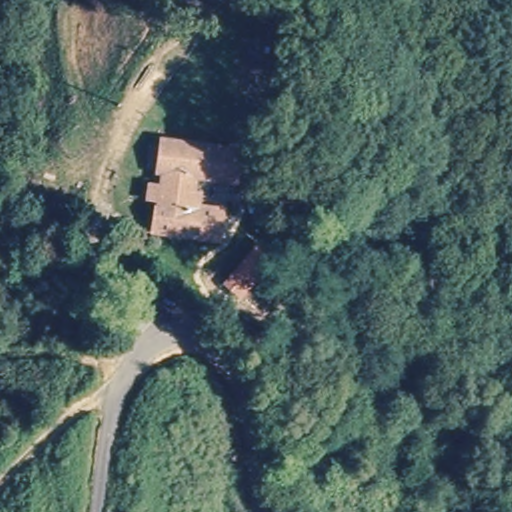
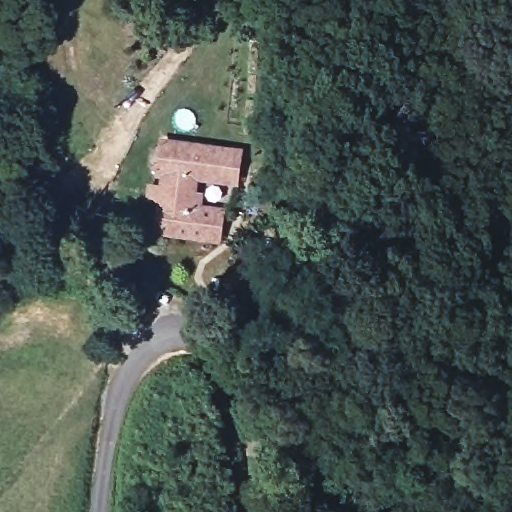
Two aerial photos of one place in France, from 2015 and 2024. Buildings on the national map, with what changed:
unchanged [(148,199),(151,181),(166,183),(168,168),(163,167),(169,137),(231,147),(226,178),(202,175),(198,208),(162,201),(148,199)]
unchanged [(226,213),(222,241),(157,229),(162,201),(198,208),(226,213)]

